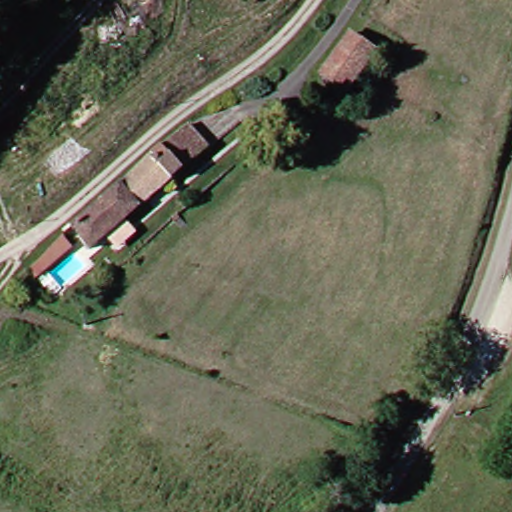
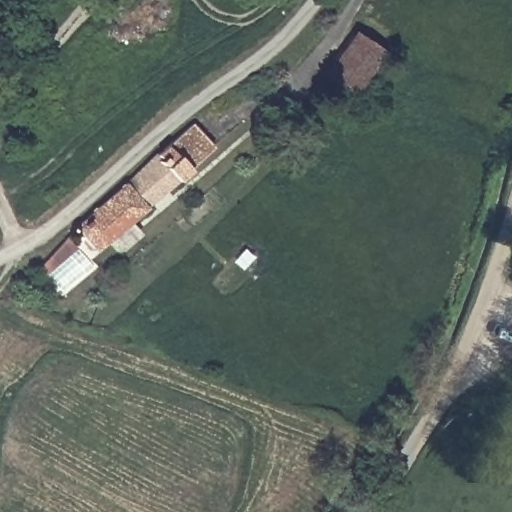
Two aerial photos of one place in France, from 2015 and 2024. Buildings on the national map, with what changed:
unchanged [(344,99),(316,84),(342,39),(370,54),(344,99)]
unchanged [(69,227),(149,158),(171,139),(183,129),(203,152),(190,163),(90,250),(69,227)]

